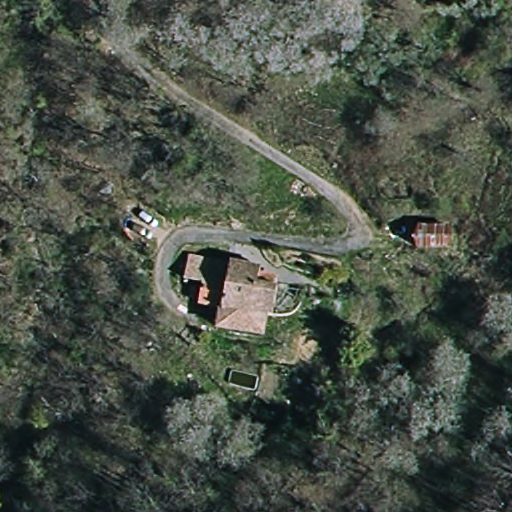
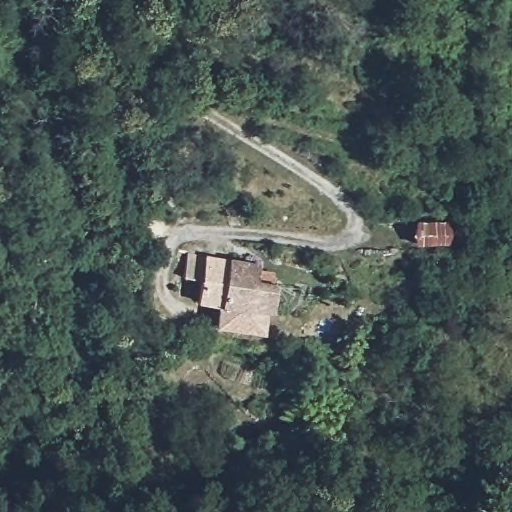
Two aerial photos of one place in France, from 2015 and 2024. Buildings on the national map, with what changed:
unchanged [(416,222),(448,221),(448,246),(416,250),(416,222)]
unchanged [(187,254),(231,260),(261,265),(259,280),(276,282),(272,315),(265,314),(263,337),(216,329),(219,308),(198,305),(200,285),(183,282),(187,254)]

